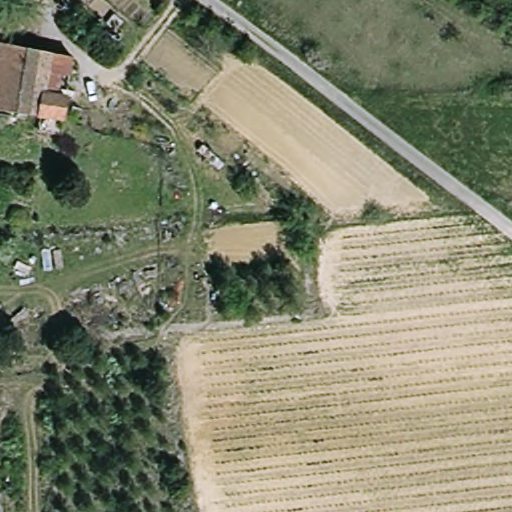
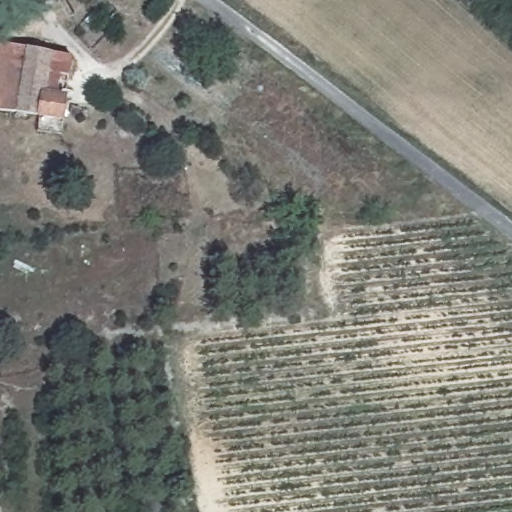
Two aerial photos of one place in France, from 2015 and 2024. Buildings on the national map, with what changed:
unchanged [(15,2),(10,33),(0,32),(0,0),(5,0),(15,2)]
unchanged [(47,116),(0,107),(0,94),(10,43),(79,57),(76,75),(60,72),(56,94),(74,97),(67,130),(46,126),(47,116)]

